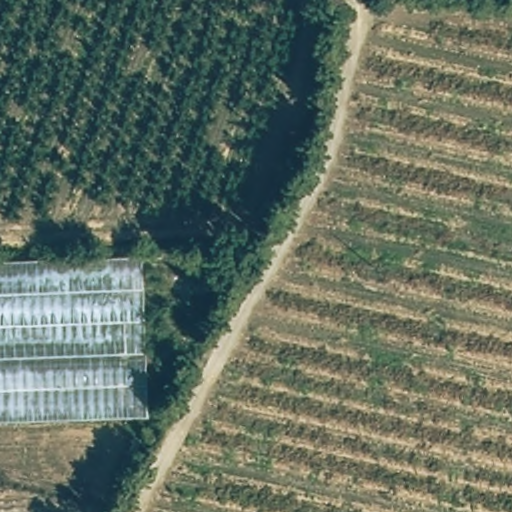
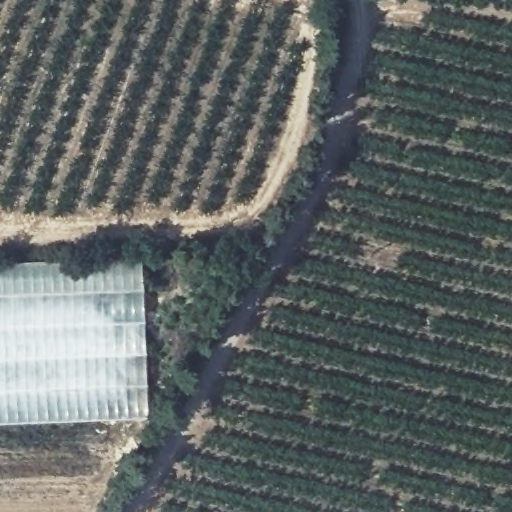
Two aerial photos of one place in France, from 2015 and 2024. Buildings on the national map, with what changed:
unchanged [(148,421),(0,425),(0,261),(141,255),(148,421)]

